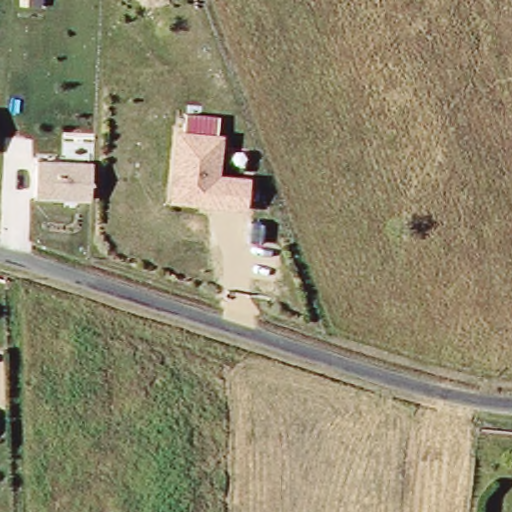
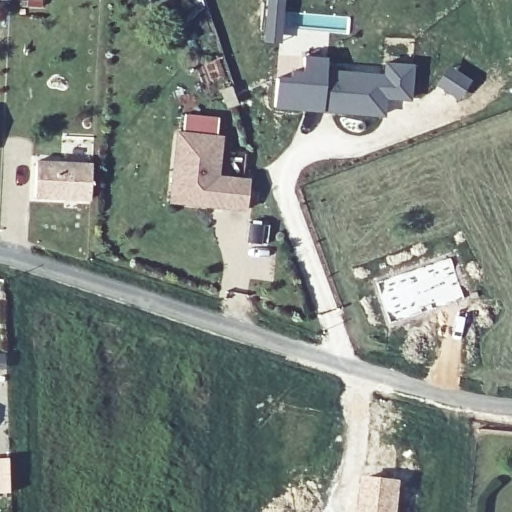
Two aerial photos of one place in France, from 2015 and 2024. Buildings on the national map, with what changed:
new [(411,99),(387,98),(385,116),(322,110),(274,106),(276,74),(290,75),(291,67),(302,69),(303,55),(327,57),(326,69),(382,73),(383,62),(412,64),(411,99)]
unchanged [(172,186),(177,134),(223,138),(219,177),(251,180),(248,211),(193,207),(170,206),(172,186)]
unchanged [(37,157),(94,161),(91,200),(34,197),(37,157)]
new [(8,462),(10,494),(0,494),(0,462),(8,462)]
new [(359,476),(401,480),(398,512),(355,512),(359,476)]

